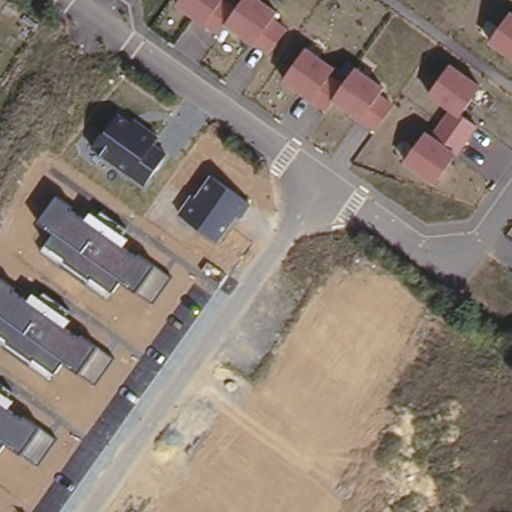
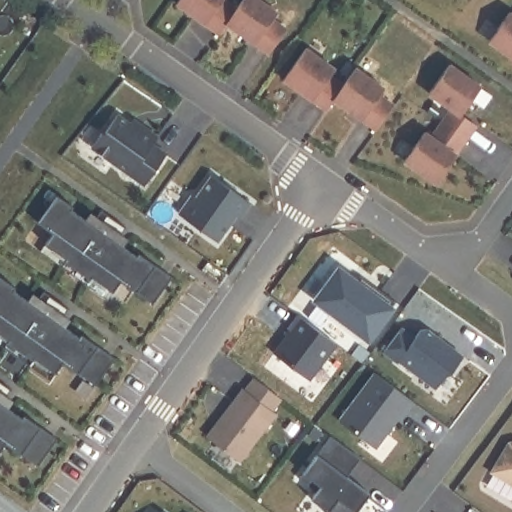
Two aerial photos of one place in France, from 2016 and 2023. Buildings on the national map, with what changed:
unchanged [(236,6),(242,0),(263,0),(280,16),(278,21),(292,32),(272,59),(231,29),(228,34),(220,27),(215,32),(176,4),(179,0),(229,0),(236,6)]
unchanged [(487,42),(511,11),(512,11),(512,59),(487,42)]
unchanged [(337,66),(331,74),(343,82),(356,67),(385,86),(380,92),(395,102),(375,130),(332,101),(325,110),(281,82),(308,46),(337,66)]
unchanged [(485,84),(461,117),(476,124),(436,186),(403,165),(428,132),(431,133),(449,109),(429,96),(450,63),(485,84)]
unchanged [(134,121),(137,117),(161,136),(155,145),(168,155),(146,187),(91,150),(119,112),(134,121)]
unchanged [(252,202),(240,220),(236,217),(218,245),(176,215),(192,193),(196,196),(211,175),(252,202)]
unchanged [(75,206),(72,212),(85,221),(91,212),(132,238),(125,247),(137,256),(140,252),(172,277),(154,302),(121,283),(110,298),(41,251),(52,236),(36,225),(57,194),(75,206)]
new [(368,339),(315,300),(340,267),(375,293),(378,290),(395,302),(368,339)]
unchanged [(14,291),(27,300),(32,293),(72,320),(65,328),(80,337),(83,334),(116,360),(97,385),(62,363),(54,376),(0,341),(0,276),(16,287),(14,291)]
new [(378,290),(375,293),(357,280),(360,276),(378,290)]
new [(274,353),(290,331),(288,329),(298,316),(335,344),(308,380),(274,353)]
new [(383,352),(401,328),(415,337),(418,332),(425,331),(461,358),(450,373),(446,373),(435,388),(398,361),(397,362),(388,356),(383,352)]
new [(403,416),(400,414),(375,448),(339,421),(375,373),(413,402),(403,416)]
new [(242,388),(245,390),(254,378),(281,399),(272,411),(276,414),(240,462),(206,437),(242,388)]
unchanged [(9,409),(22,419),(25,415),(55,438),(37,464),(6,444),(0,452),(0,390),(15,401),(9,409)]
new [(315,492),(298,478),(330,437),(360,459),(347,477),(370,495),(361,506),(356,512),(327,512),(310,499),(315,492)]
new [(507,445),(512,444),(512,487),(490,475),(507,445)]

